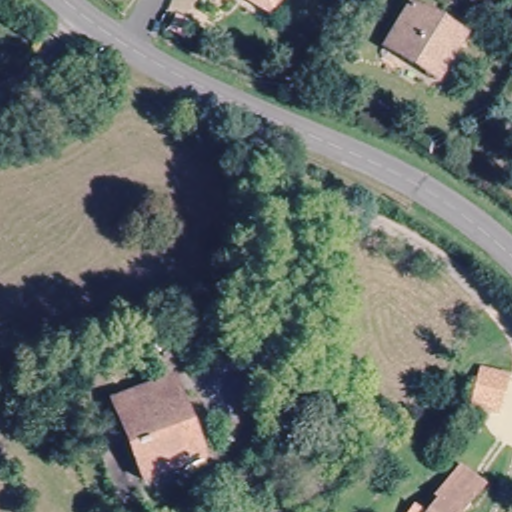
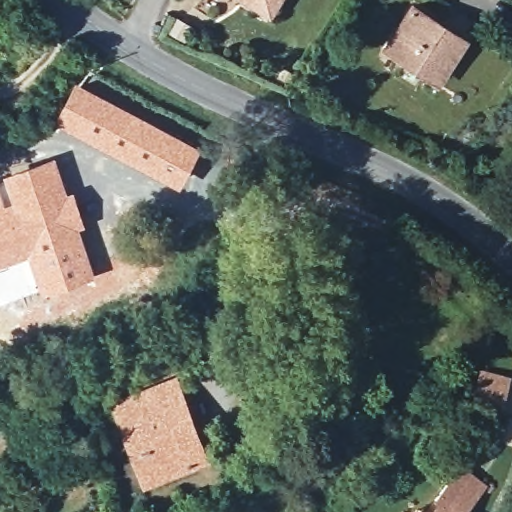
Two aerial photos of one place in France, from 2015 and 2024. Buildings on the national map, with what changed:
unchanged [(246,0),(278,0),(269,15),(246,0)]
unchanged [(466,40),(438,84),(388,51),(416,7),(466,40)]
new [(75,81),(201,146),(180,187),(130,162),(54,122),(75,81)]
new [(2,174),(55,156),(67,191),(74,189),(86,226),(80,228),(96,275),(42,293),(27,254),(0,263),(0,175),(2,174)]
unchanged [(512,378),(508,394),(506,393),(500,419),(471,412),(481,369),(512,376),(512,378)]
unchanged [(116,402),(177,379),(185,399),(124,421),(116,402)]
unchanged [(209,459),(148,482),(124,421),(185,399),(209,459)]
unchanged [(463,465),(472,473),(485,484),(470,502),(461,512),(422,512),(463,465)]

